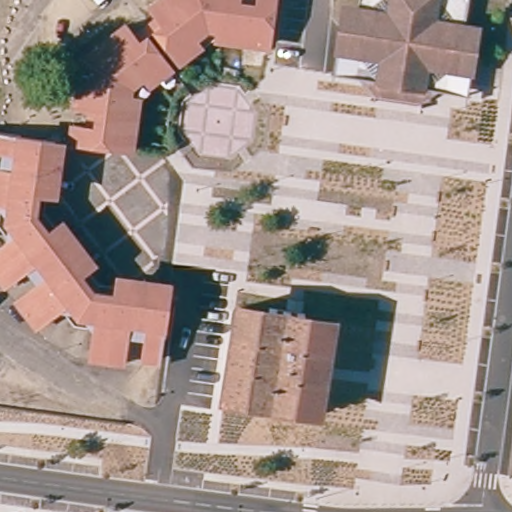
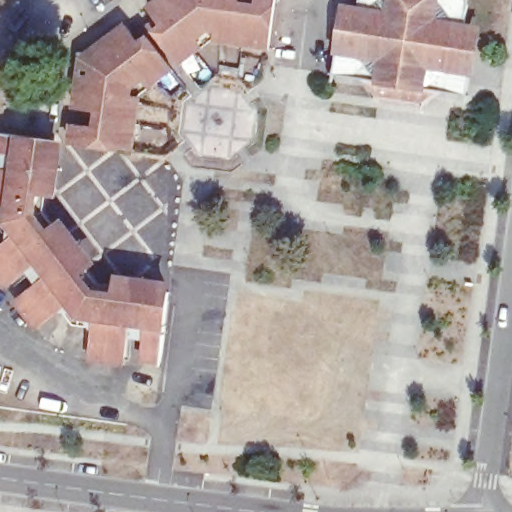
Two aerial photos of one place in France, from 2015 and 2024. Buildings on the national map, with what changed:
unchanged [(230,0),(234,7),(253,10),(261,3),(258,0),(278,0),(271,47),(217,42),(217,34),(207,34),(194,44),(193,51),(176,64),(155,37),(163,32),(163,19),(150,17),(144,11),(159,0),(230,0)]
unchanged [(481,32),(467,56),(458,62),(474,82),(469,82),(466,99),(434,94),(418,107),(375,104),(365,80),(334,76),(336,55),(340,11),(359,11),(361,0),(468,0),(464,30),(481,32)]
unchanged [(78,128),(86,129),(91,135),(100,129),(102,117),(97,106),(88,112),(79,112),(83,79),(91,80),(95,84),(103,77),(86,59),(93,54),(95,56),(108,47),(106,44),(113,38),(125,29),(133,37),(131,44),(143,46),(148,43),(169,71),(153,82),(149,86),(147,82),(134,92),(133,102),(142,104),(139,125),(135,153),(75,146),(78,128)]
unchanged [(90,358),(92,343),(93,333),(99,331),(93,323),(77,321),(67,307),(55,305),(59,312),(43,322),(29,317),(20,304),(41,290),(46,292),(49,283),(38,267),(27,266),(26,275),(7,286),(0,276),(0,254),(12,245),(15,246),(17,236),(4,219),(8,195),(2,196),(0,202),(0,201),(0,170),(1,171),(11,166),(11,154),(8,145),(0,151),(0,129),(43,135),(34,216),(88,292),(167,302),(163,359),(153,358),(152,368),(141,364),(144,341),(147,335),(141,329),(126,327),(120,332),(125,340),(123,356),(123,362),(90,358)]
unchanged [(54,136),(46,212),(97,282),(169,291),(167,302),(88,292),(34,216),(43,135),(54,136)]
demolished [(234,305),(278,312),(293,313),(326,319),(314,408),(221,392),(234,305)]

